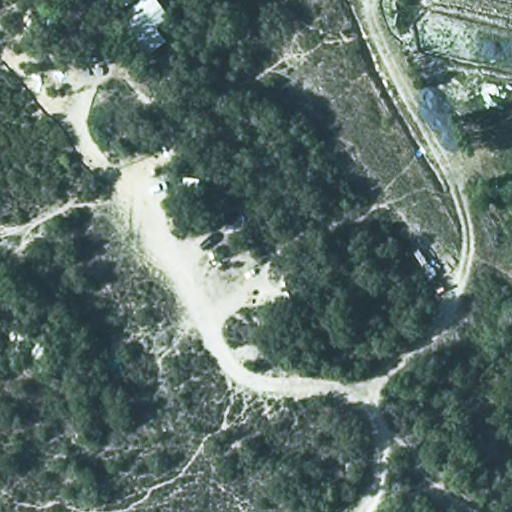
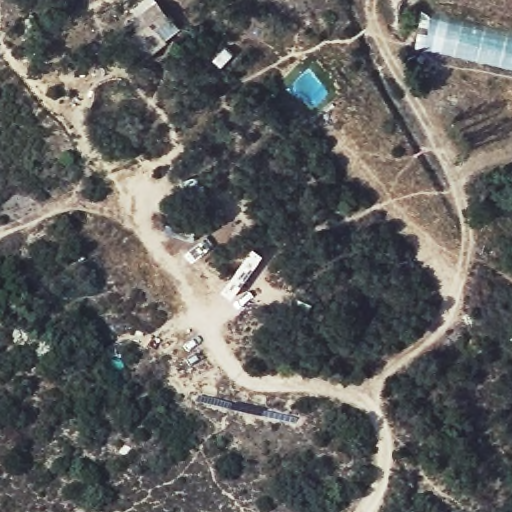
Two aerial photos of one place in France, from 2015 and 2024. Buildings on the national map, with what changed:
unchanged [(157,0),(174,18),(160,29),(170,41),(150,55),(124,24),(156,0),(157,0)]
new [(429,52),(437,14),(512,31),(512,71),(429,52)]
demolished [(256,253),(262,239),(286,253),(277,264),(256,253)]

